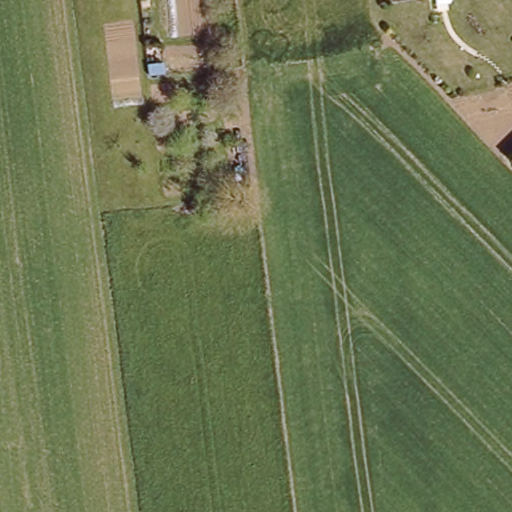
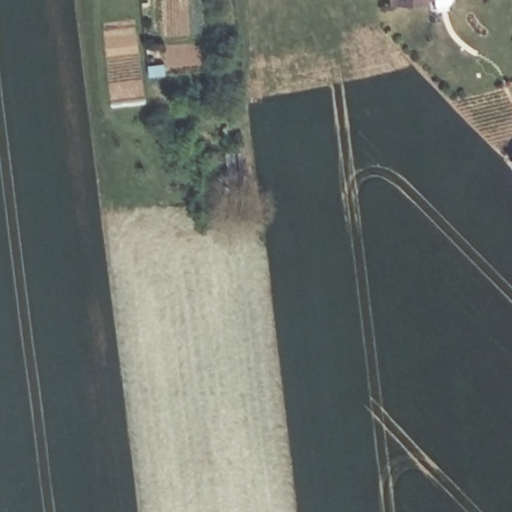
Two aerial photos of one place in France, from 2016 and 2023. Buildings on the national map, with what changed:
unchanged [(448,0),(436,2),(436,0),(448,0)]
unchanged [(512,160),(512,164),(510,162),(512,160)]

